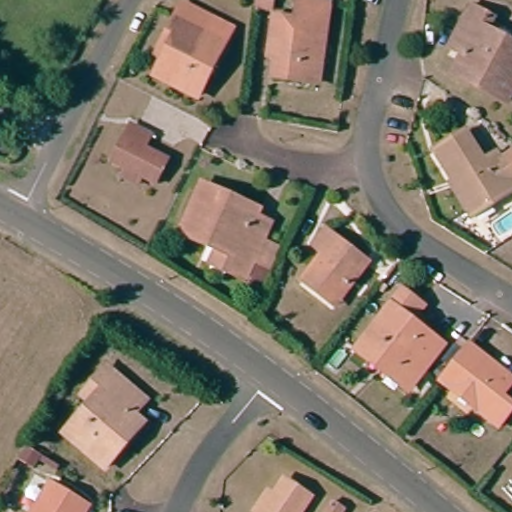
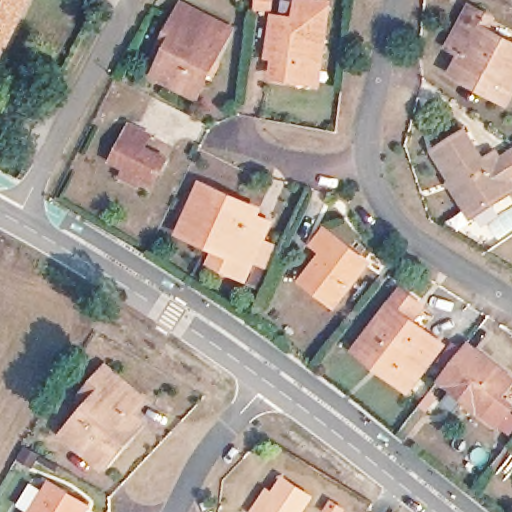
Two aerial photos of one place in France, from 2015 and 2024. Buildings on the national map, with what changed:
new [(0,0),(32,0),(7,54),(0,50),(0,0)]
unchanged [(258,8),(259,0),(274,0),(273,10),(258,8)]
unchanged [(306,85),(284,83),(285,59),(275,58),(279,21),(290,23),(300,24),(304,4),(334,8),(325,72),(323,87),(306,85)]
unchanged [(463,68),(468,58),(455,51),(474,13),(490,22),(486,33),(512,47),(512,99),(508,106),(493,99),(457,80),(463,68)]
unchanged [(199,105),(159,85),(168,68),(160,65),(169,46),(178,29),(185,14),(210,26),(233,38),(225,52),(215,47),(207,64),(212,66),(217,69),(207,89),(199,105)]
unchanged [(112,164),(124,141),(130,130),(148,139),(144,145),(142,150),(143,150),(165,162),(168,163),(155,187),(144,181),(139,189),(121,180),(126,171),(112,164)]
unchanged [(454,188),(436,158),(471,139),(487,167),(501,159),(504,165),(512,160),(512,200),(490,213),(474,222),(454,188)]
unchanged [(176,240),(198,194),(218,203),(250,217),(249,225),(264,231),(255,251),(271,258),(263,277),(248,270),(241,286),(224,278),(204,270),(209,256),(176,240)]
unchanged [(319,299),(299,286),(319,260),(310,253),(322,237),(330,244),(365,269),(339,304),(334,311),(319,299)]
unchanged [(368,365),(357,357),(399,299),(416,310),(407,324),(438,347),(418,376),(406,393),(368,365)]
unchanged [(474,344),(512,376),(512,391),(507,397),(512,401),(512,414),(500,429),(479,410),(482,407),(459,389),(454,391),(444,382),(474,344)]
unchanged [(119,455),(104,474),(63,439),(89,407),(79,401),(90,389),(103,374),(140,404),(130,419),(133,421),(140,428),(119,455)]
unchanged [(311,502),(304,512),(256,512),(269,493),(275,496),(287,483),(311,502)]
unchanged [(49,485),(88,507),(84,512),(33,512),(49,485)]
unchanged [(340,512),(326,512),(329,506),(340,512)]

